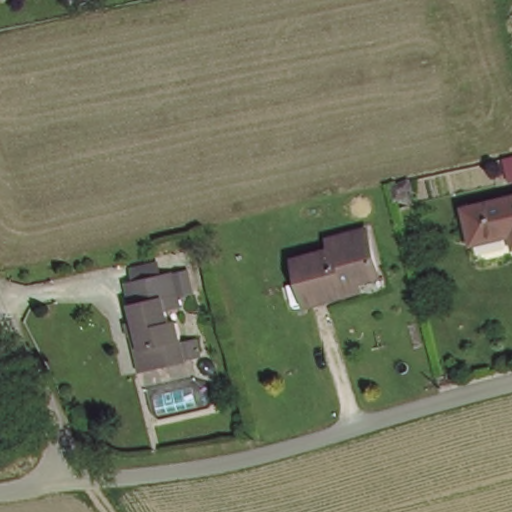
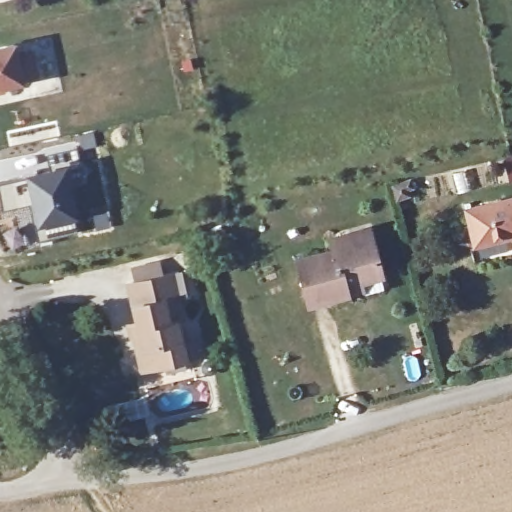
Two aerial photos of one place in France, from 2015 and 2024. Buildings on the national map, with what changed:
new [(14,43),(15,51),(32,49),(39,79),(22,83),(2,87),(4,92),(0,93),(0,45),(14,43)]
new [(82,156),(84,161),(93,159),(94,163),(96,163),(112,228),(37,242),(24,172),(82,156)]
unchanged [(466,208),(512,197),(512,235),(475,245),(466,208)]
unchanged [(347,291),(312,301),(299,254),(335,244),(331,230),(347,225),(370,220),(382,266),(360,273),(364,287),(347,291)]
unchanged [(176,365),(142,372),(137,351),(130,321),(139,319),(130,280),(177,270),(185,306),(170,310),(174,326),(184,324),(187,343),(191,362),(176,365)]

